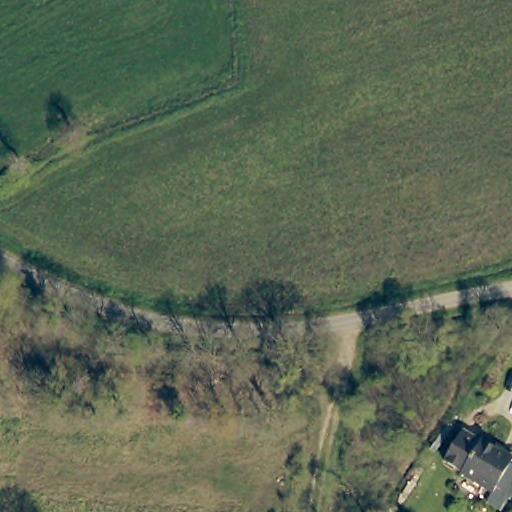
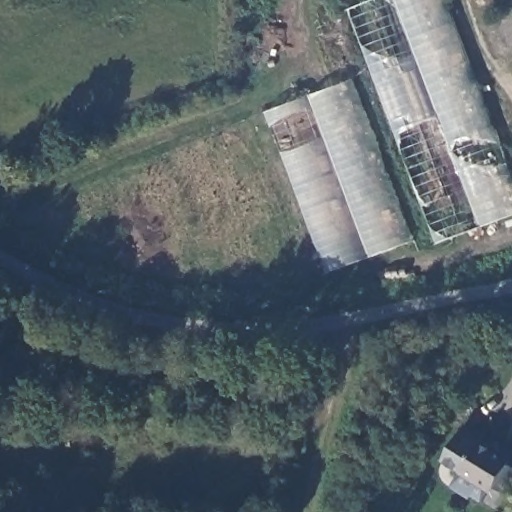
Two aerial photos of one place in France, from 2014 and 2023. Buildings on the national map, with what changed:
new [(512,175),(512,215),(438,243),(350,9),(373,0),(446,0),(512,175)]
new [(412,242),(329,273),(268,112),(355,79),(412,242)]
unchanged [(122,350),(122,359),(105,357),(105,348),(122,350)]
unchanged [(493,489),(490,494),(459,475),(458,474),(440,463),(458,433),(476,443),(477,443),(509,461),(506,466),(512,470),(512,487),(507,497),(493,489)]

